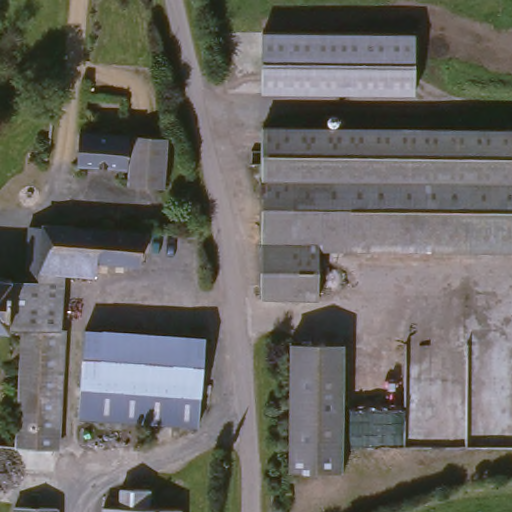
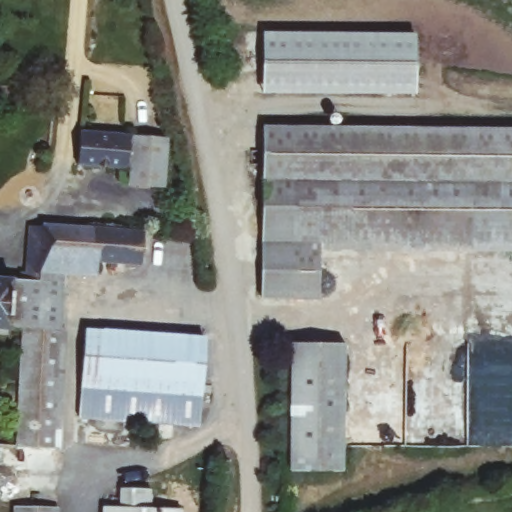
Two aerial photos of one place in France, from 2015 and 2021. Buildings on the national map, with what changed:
unchanged [(416,92),(263,89),(264,29),(418,32),(416,92)]
unchanged [(349,127),(512,130),(512,248),(318,245),(318,176),(262,175),(263,124),(349,127)]
unchanged [(126,167),(80,164),(84,131),(133,135),(126,167)]
unchanged [(166,186),(134,182),(139,135),(171,138),(166,186)]
unchanged [(318,176),(318,245),(318,297),(260,297),(262,175),(318,176)]
unchanged [(29,226),(43,227),(44,224),(141,230),(139,262),(98,259),(96,274),(65,271),(25,268),(29,226)]
unchanged [(11,278),(23,279),(25,268),(65,271),(58,328),(23,325),(8,324),(11,278)]
unchanged [(0,277),(11,278),(8,324),(0,323),(0,277)]
unchanged [(58,328),(63,328),(52,448),(12,445),(23,325),(58,328)]
unchanged [(84,327),(203,334),(198,394),(195,423),(78,416),(81,386),(84,327)]
unchanged [(291,345),(341,345),(343,473),(288,471),(291,345)]
unchanged [(114,497),(116,479),(145,481),(143,499),(174,502),(174,512),(96,512),(98,496),(114,497)]

